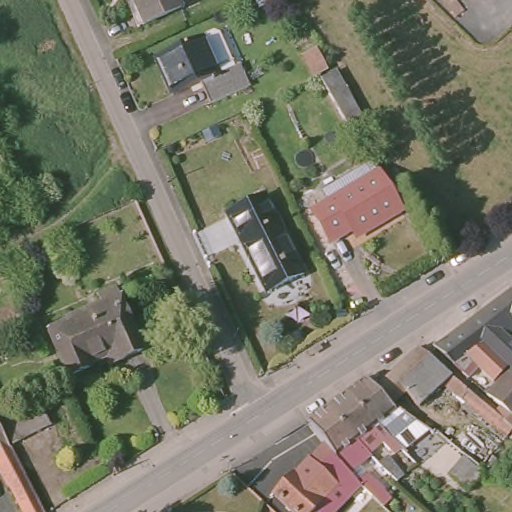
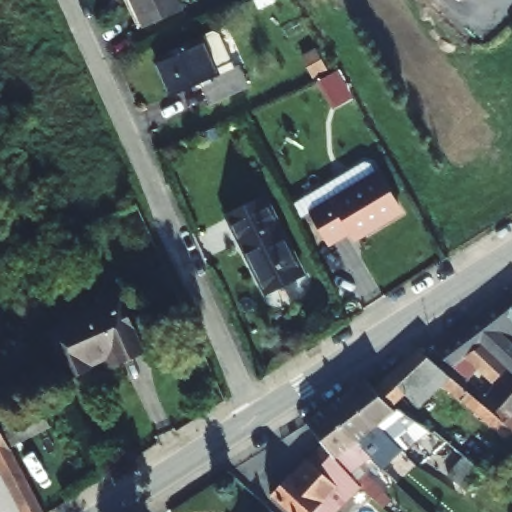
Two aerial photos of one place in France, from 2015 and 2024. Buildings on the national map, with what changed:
unchanged [(140,26),(129,0),(179,0),(183,10),(140,26)]
unchanged [(250,94),(210,109),(202,88),(196,90),(179,96),(173,99),(158,61),(201,44),(217,39),(222,41),(233,69),(235,68),(237,73),(240,71),(250,94)]
unchanged [(352,132),(325,87),(340,80),(365,124),(352,132)]
unchanged [(355,228),(333,240),(318,208),(345,195),(338,182),(372,164),(398,219),(362,238),(355,228)]
unchanged [(264,195),(303,273),(266,291),(228,213),(264,195)]
unchanged [(482,344),(453,365),(447,359),(434,346),(462,325),(510,290),(512,292),(512,338),(511,339),(512,340),(512,371),(482,344)]
unchanged [(45,339),(66,329),(63,323),(97,307),(93,299),(109,292),(140,349),(107,367),(102,360),(65,378),(45,339)]
unchanged [(495,403),(483,393),(477,387),(485,380),(474,369),(465,376),(453,365),(482,344),(512,371),(512,387),(495,403)]
unchanged [(369,386),(412,347),(502,421),(512,429),(512,431),(504,442),(457,404),(432,383),(404,414),(369,386)]
unchanged [(364,455),(352,442),(322,407),(347,389),(360,379),(369,386),(404,414),(410,418),(423,429),(404,448),(415,460),(401,474),(391,484),(372,464),(364,455)]
unchanged [(502,421),(493,414),(502,406),(495,403),(512,387),(512,429),(502,421)]
unchanged [(341,452),(362,474),(354,482),(299,424),(322,407),(352,442),(341,452)]
unchanged [(0,474),(0,427),(22,412),(30,418),(46,411),(54,429),(16,451),(45,512),(21,512),(0,474)]
unchanged [(269,496),(316,452),(344,478),(322,500),(335,511),(333,512),(286,512),(269,496)]
unchanged [(479,472),(463,493),(445,478),(461,458),(479,472)]

